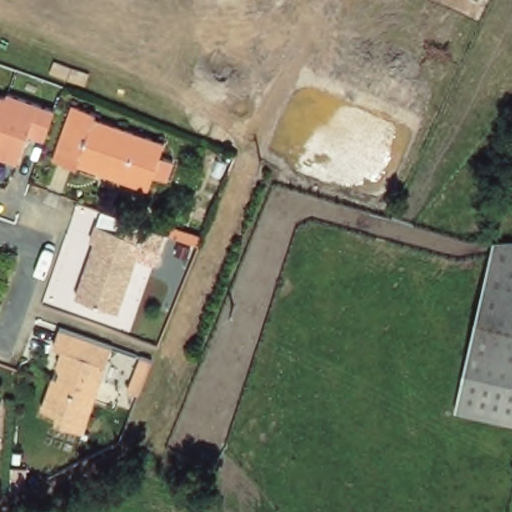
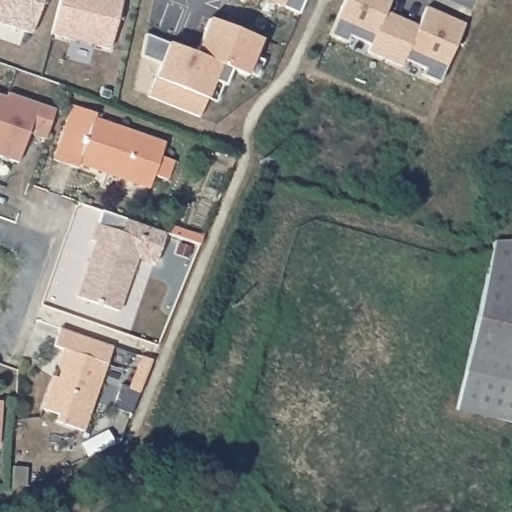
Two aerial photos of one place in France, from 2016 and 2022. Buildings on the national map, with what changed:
new [(0,22),(0,0),(43,0),(31,33),(0,22)]
new [(122,0),(110,49),(51,35),(60,0),(122,0)]
new [(247,0),(242,1),(242,0),(247,0)]
new [(305,0),(299,14),(268,0),(305,0)]
new [(386,11),(417,26),(426,7),(465,25),(440,83),(400,65),(403,59),(371,45),(368,51),(330,35),(345,0),(391,0),(386,11)]
new [(145,35),(195,55),(210,19),(261,40),(246,75),(230,69),(223,86),(212,82),(199,117),(146,96),(160,64),(141,56),(145,35)]
unchanged [(7,93),(55,110),(45,140),(27,134),(16,162),(0,156),(0,95),(6,97),(7,93)]
unchanged [(95,119),(94,124),(164,148),(159,162),(173,167),(166,185),(154,180),(149,192),(79,167),(76,172),(52,164),(71,110),(95,119)]
unchanged [(91,240),(97,222),(142,239),(117,311),(76,297),(95,240),(91,240)]
unchanged [(512,245),(512,386),(461,374),(460,374),(461,370),(488,245),(512,245)]
unchanged [(49,350),(55,331),(108,350),(77,435),(51,426),(54,418),(37,413),(48,381),(52,368),(57,353),(49,350)]
unchanged [(512,386),(512,427),(452,414),(461,374),(512,386)]
unchanged [(0,404),(2,404),(0,434),(0,404)]

